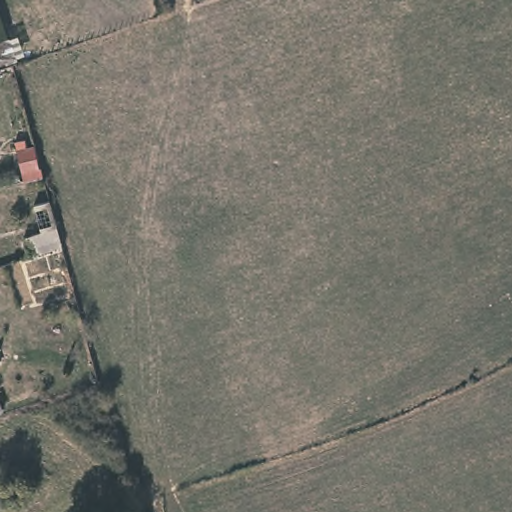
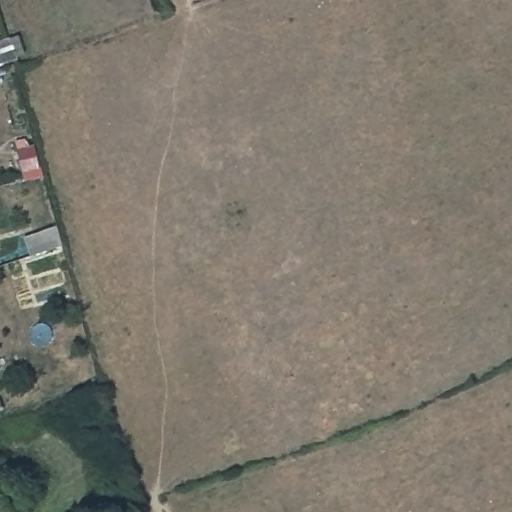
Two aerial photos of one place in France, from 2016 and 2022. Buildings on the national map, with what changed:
unchanged [(23,56),(5,64),(0,52),(0,39),(15,34),(23,56)]
unchanged [(37,147),(42,166),(28,170),(24,150),(37,147)]
unchanged [(65,246),(32,256),(26,235),(43,229),(59,224),(65,246)]

